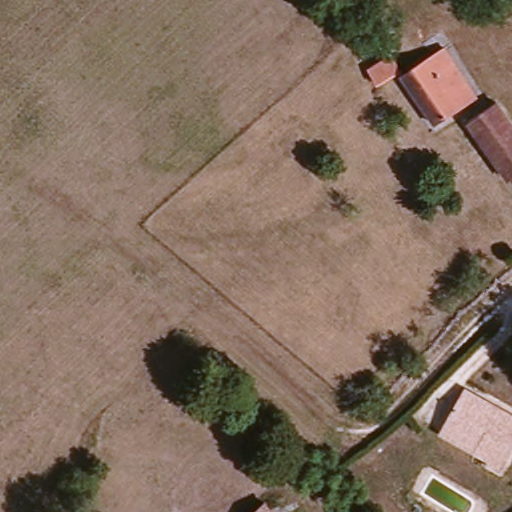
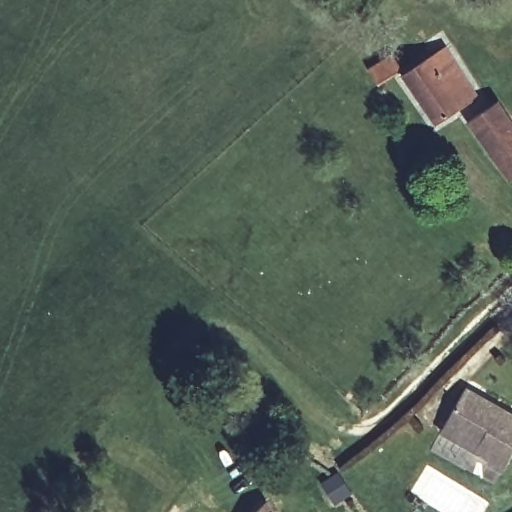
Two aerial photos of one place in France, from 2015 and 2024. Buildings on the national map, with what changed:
unchanged [(437,51),(471,99),(432,126),(398,79),(437,51)]
unchanged [(395,73),(375,84),(368,72),(388,61),(395,73)]
unchanged [(512,180),(471,123),(493,106),(512,132),(512,180)]
unchanged [(495,452),(480,444),(447,424),(450,418),(472,382),(512,405),(512,457),(508,464),(493,456),(495,452)]
unchanged [(269,512),(253,512),(265,503),(269,512)]

